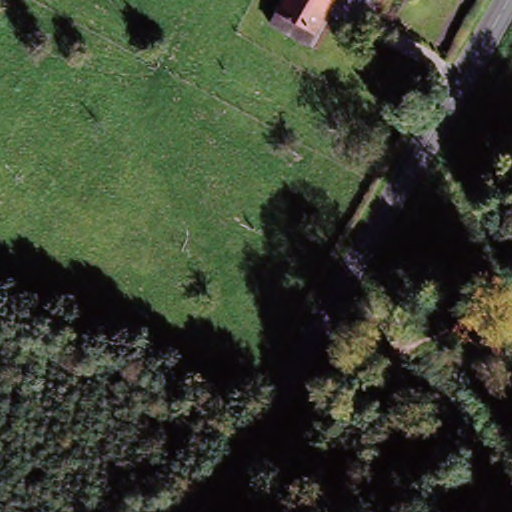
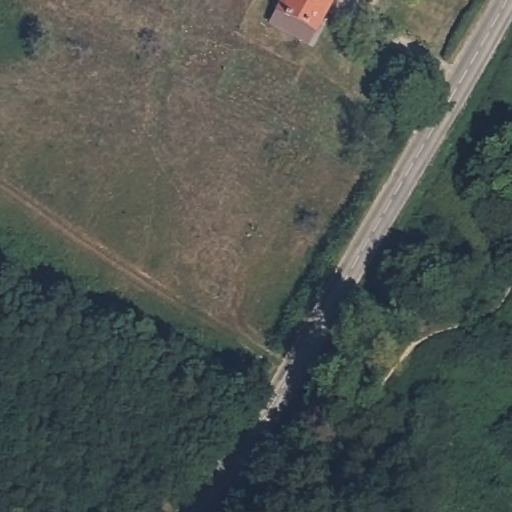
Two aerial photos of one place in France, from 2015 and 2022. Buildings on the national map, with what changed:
unchanged [(288,0),(336,0),(320,25),(286,2),(288,0)]

